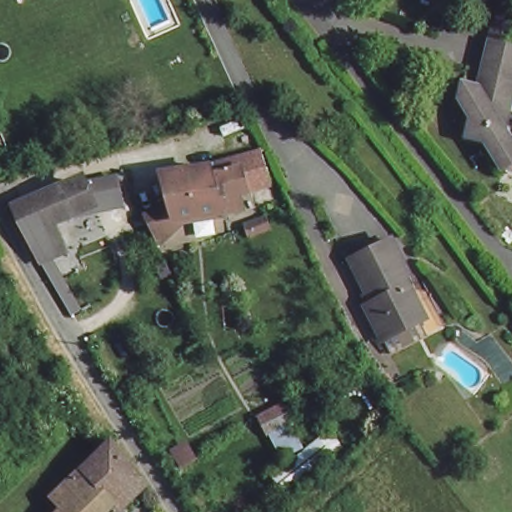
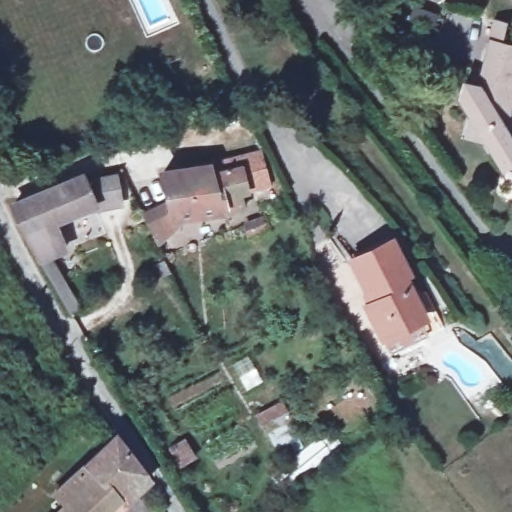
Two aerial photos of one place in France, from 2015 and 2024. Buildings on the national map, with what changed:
unchanged [(449,88),(482,77),(484,35),(512,38),(512,109),(511,117),(512,120),(512,170),(502,177),(449,88)]
unchanged [(231,190),(233,208),(196,216),(171,222),(156,172),(183,169),(235,161),(238,167),(258,165),(264,184),(245,187),(246,189),(231,190)]
unchanged [(41,258),(13,202),(56,183),(84,175),(94,200),(41,226),(60,247),(41,258)]
unchanged [(385,342),(378,330),(360,301),(366,295),(342,254),(382,229),(409,272),(401,276),(418,305),(425,315),(385,342)]
unchanged [(281,396),(302,444),(317,430),(331,447),(284,489),(269,472),(281,459),(253,411),(281,396)]
unchanged [(79,507),(66,490),(111,445),(138,481),(141,485),(114,512),(73,512),(79,507)]

